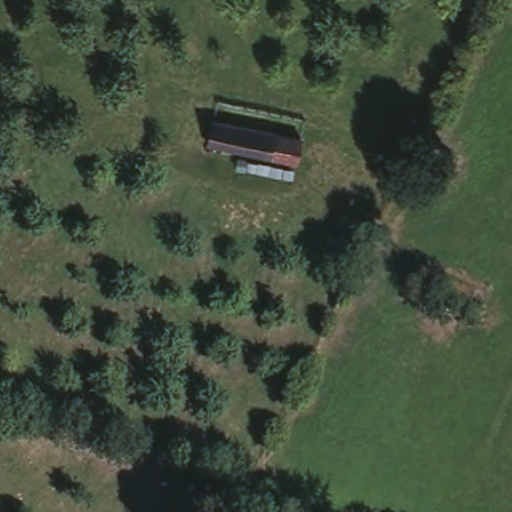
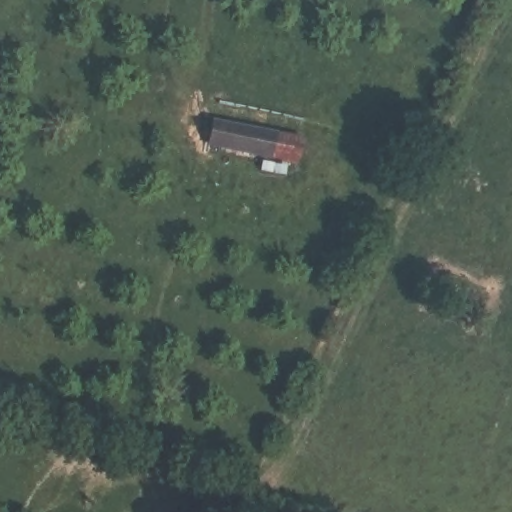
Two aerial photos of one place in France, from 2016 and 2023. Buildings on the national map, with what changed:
unchanged [(295,171),(273,166),(212,152),(219,126),(280,141),(300,146),(295,171)]

